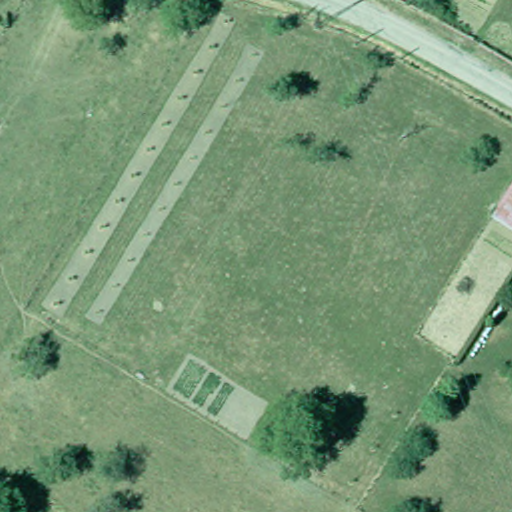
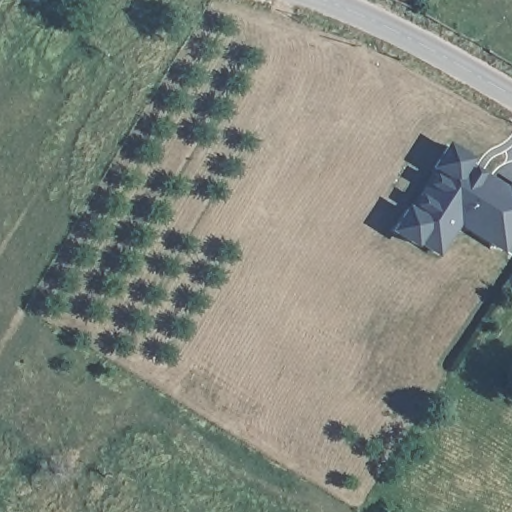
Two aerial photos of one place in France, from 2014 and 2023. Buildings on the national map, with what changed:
new [(502,253),(459,225),(438,256),(419,243),(416,248),(389,231),(409,201),(413,203),(433,170),(429,168),(449,137),(476,154),(512,176),(512,237),(502,253)]
demolished [(512,179),(512,224),(492,213),(512,179)]

